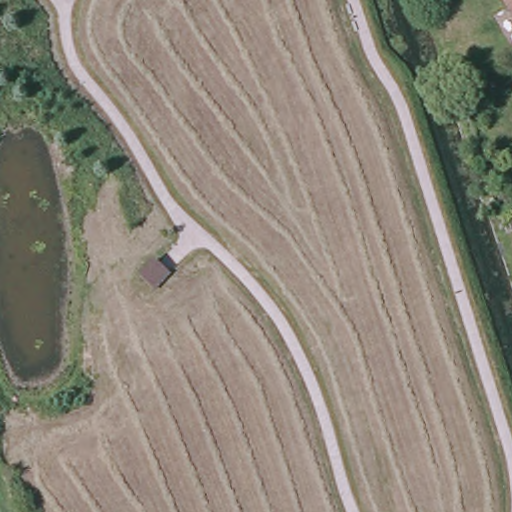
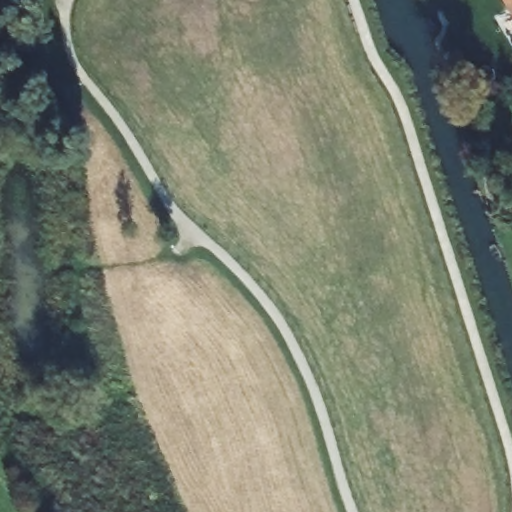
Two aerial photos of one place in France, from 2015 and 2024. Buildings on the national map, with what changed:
unchanged [(495,0),(512,0),(512,28),(495,0)]

